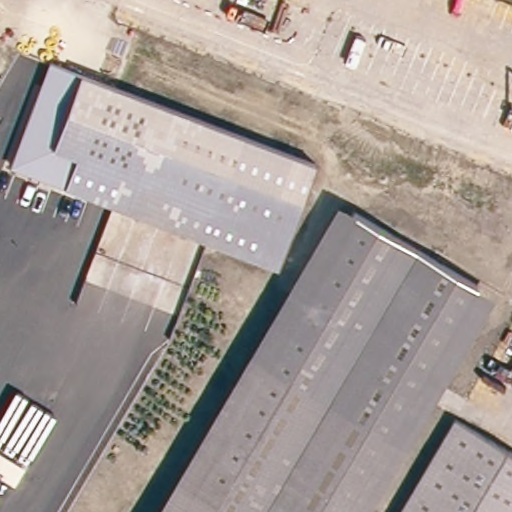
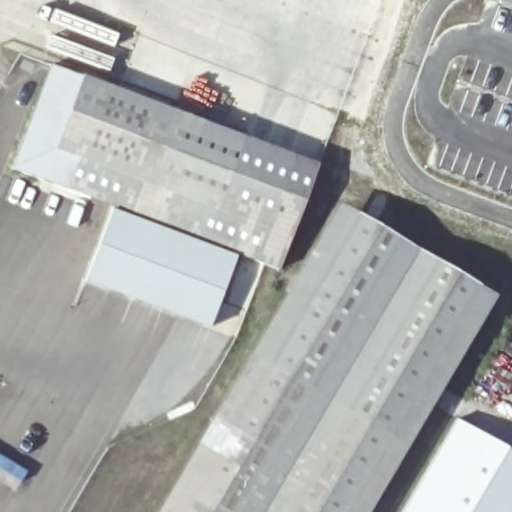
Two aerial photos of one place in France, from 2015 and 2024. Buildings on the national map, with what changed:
unchanged [(277,269),(11,170),(51,62),(318,166),(277,269)]
unchanged [(337,207),(354,218),(180,512),(157,512),(337,207)]
new [(113,211),(234,256),(208,328),(87,281),(113,211)]
unchanged [(354,218),(359,221),(477,290),(346,512),(180,512),(354,218)]
unchanged [(477,290),(494,300),(369,512),(346,512),(477,290)]
unchanged [(461,422),(512,451),(512,512),(409,512),(461,422)]

